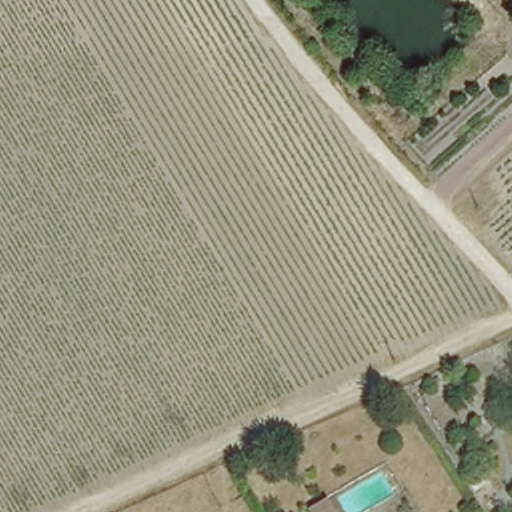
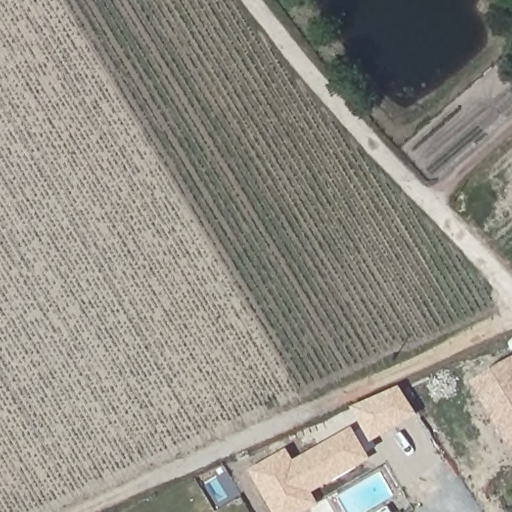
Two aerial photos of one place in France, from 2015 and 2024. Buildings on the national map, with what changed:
new [(471,382),(512,358),(512,447),(471,382)]
new [(419,417),(372,445),(355,410),(402,386),(419,417)]
new [(320,505),(309,512),(274,512),(252,471),(289,450),(295,460),(353,428),(373,460),(314,494),(320,505)]
unchanged [(312,512),(310,509),(328,498),(335,512),(312,512)]

